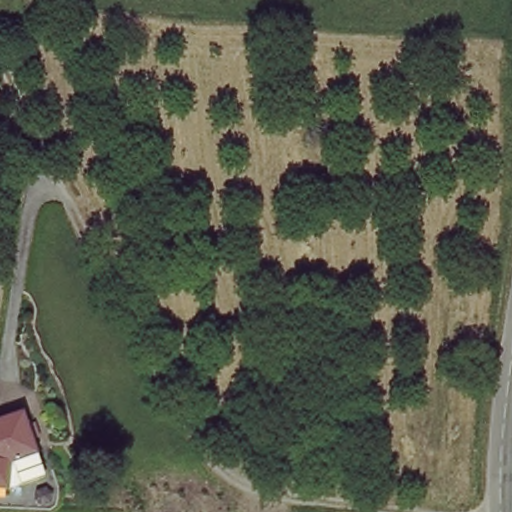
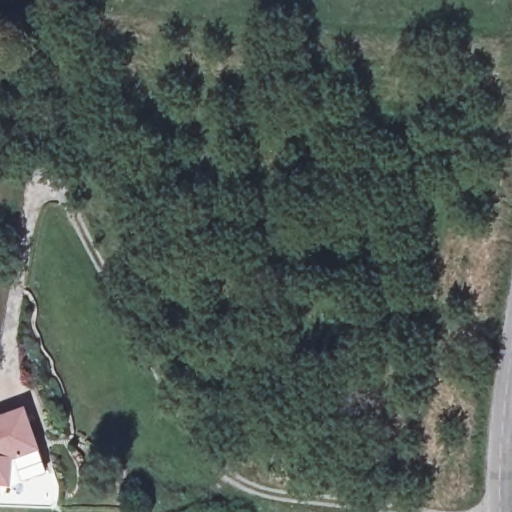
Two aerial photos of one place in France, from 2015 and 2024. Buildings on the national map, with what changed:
unchanged [(0,488),(0,418),(30,412),(37,451),(6,456),(4,482),(3,488),(0,488)]

